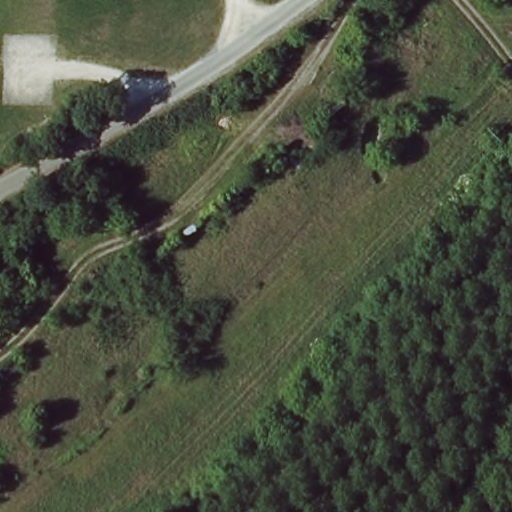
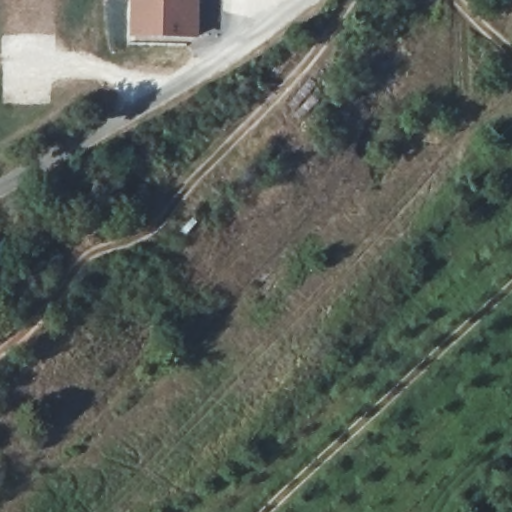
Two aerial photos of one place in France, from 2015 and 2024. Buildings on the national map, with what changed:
new [(137,0),(199,0),(199,30),(136,28),(137,0)]

